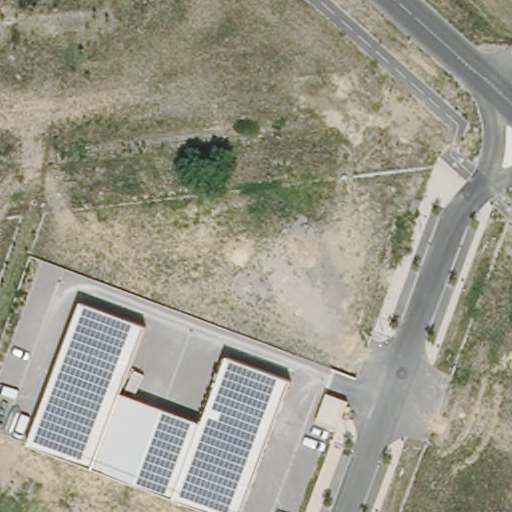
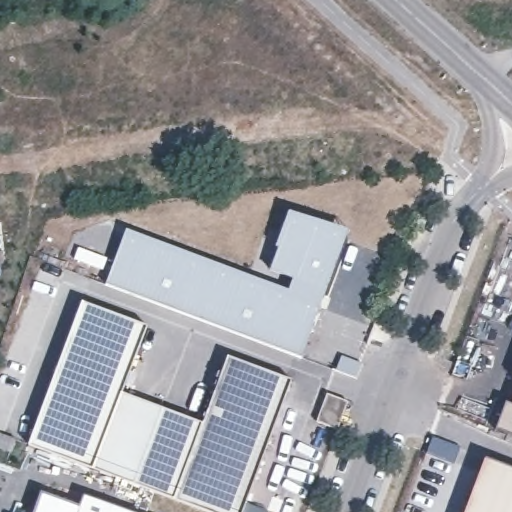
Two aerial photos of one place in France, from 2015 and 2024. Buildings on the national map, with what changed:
new [(345,232),(297,353),(107,282),(125,233),(286,292),(292,276),(269,267),(288,215),(345,232)]
unchanged [(27,445),(82,302),(147,327),(122,393),(202,422),(227,356),(291,380),(242,512),(214,512),(27,445)]
new [(327,393),(348,401),(337,430),(317,421),(327,393)]
new [(505,402),(512,404),(512,435),(495,429),(505,402)]
new [(485,458),(512,469),(512,512),(465,512),(485,458)]
new [(42,493),(79,507),(83,495),(129,512),(35,512),(42,493)]

